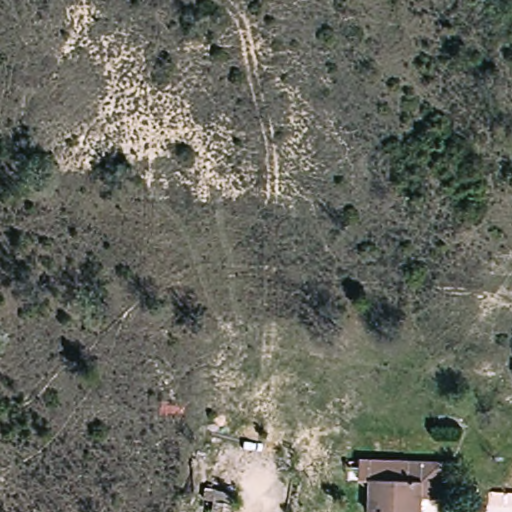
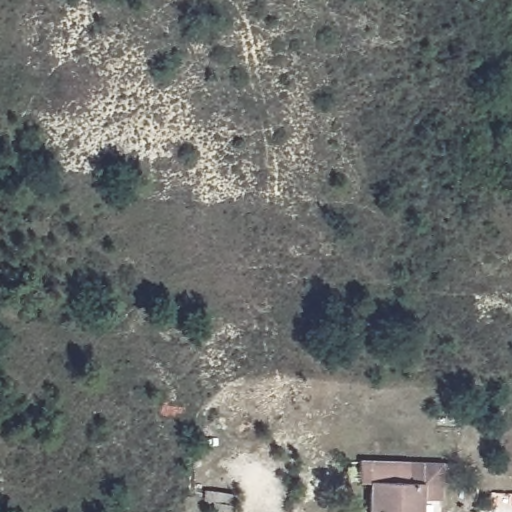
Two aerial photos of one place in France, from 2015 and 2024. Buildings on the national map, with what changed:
unchanged [(369,484),(358,484),(359,460),(440,462),(439,498),(420,497),(420,512),(369,512),(369,484)]
unchanged [(225,512),(207,512),(207,496),(226,496),(225,512)]

